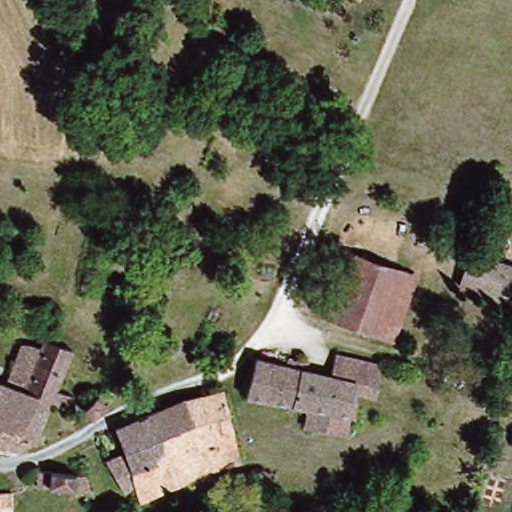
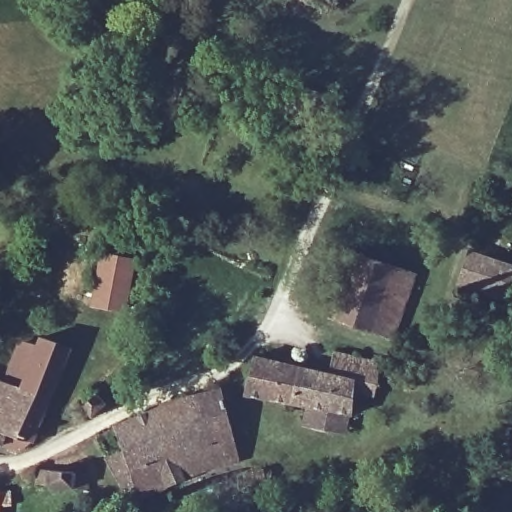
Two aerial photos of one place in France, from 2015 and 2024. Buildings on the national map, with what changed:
unchanged [(322,311),(343,250),(412,275),(391,335),(322,311)]
unchanged [(474,250),(512,270),(512,304),(509,308),(458,281),(474,250)]
new [(98,254),(134,260),(127,313),(90,306),(98,254)]
unchanged [(70,386),(65,401),(47,396),(5,373),(21,337),(39,343),(43,335),(68,344),(55,382),(70,386)]
unchanged [(298,430),(303,409),(243,394),(251,358),(255,355),(323,370),(327,355),(369,367),(365,380),(355,378),(346,419),(341,440),(298,430)]
unchanged [(5,373),(47,396),(30,445),(9,452),(0,449),(0,371),(5,373)]
unchanged [(222,389),(241,459),(139,495),(112,432),(162,411),(222,389)]
unchanged [(263,467),(269,487),(255,491),(249,473),(263,467)]
unchanged [(17,488),(18,503),(9,507),(10,512),(0,512),(0,490),(17,488)]

